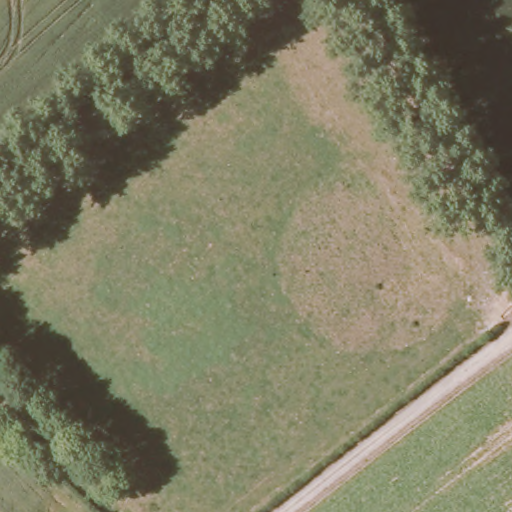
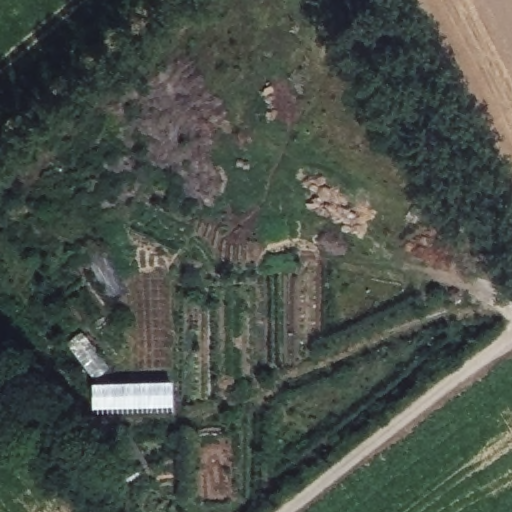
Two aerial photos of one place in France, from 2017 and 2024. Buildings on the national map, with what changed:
new [(92,411),(92,385),(170,383),(171,409),(92,411)]

